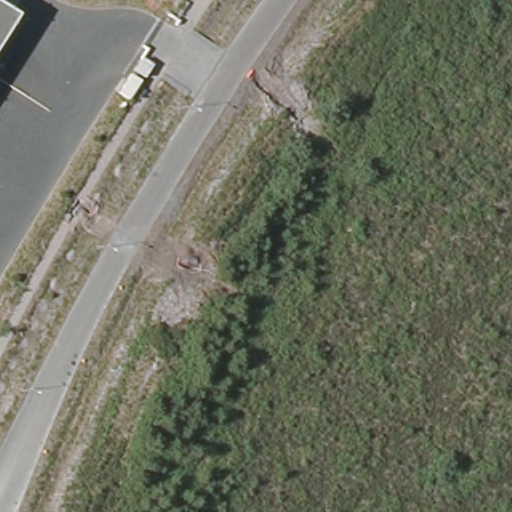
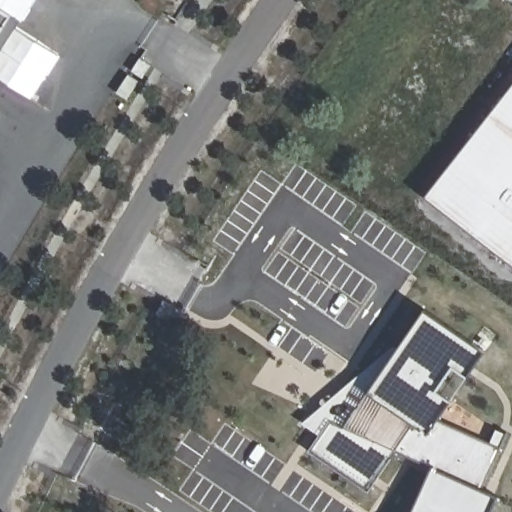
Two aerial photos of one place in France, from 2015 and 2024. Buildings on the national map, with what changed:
new [(12,16),(0,8),(0,0),(35,0),(20,21),(12,16)]
unchanged [(12,16),(0,36),(0,8),(12,16)]
new [(15,29),(58,56),(29,98),(0,79),(0,53),(15,29)]
new [(512,87),(512,263),(427,197),(512,87)]
new [(433,466),(396,450),(368,491),(309,452),(320,435),(303,423),(396,352),(424,311),(485,353),(439,422),(499,448),(481,490),(496,497),(489,512),(413,512),(433,466)]

